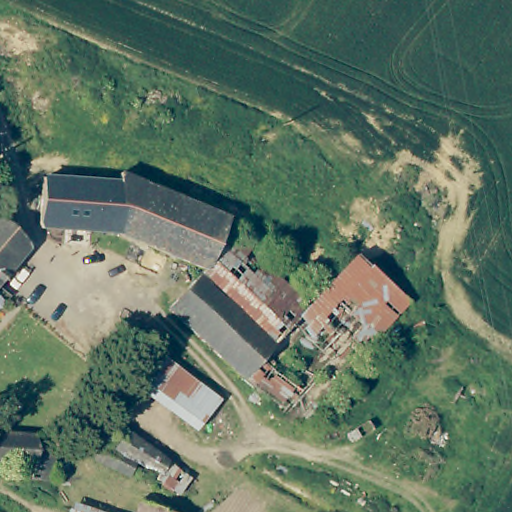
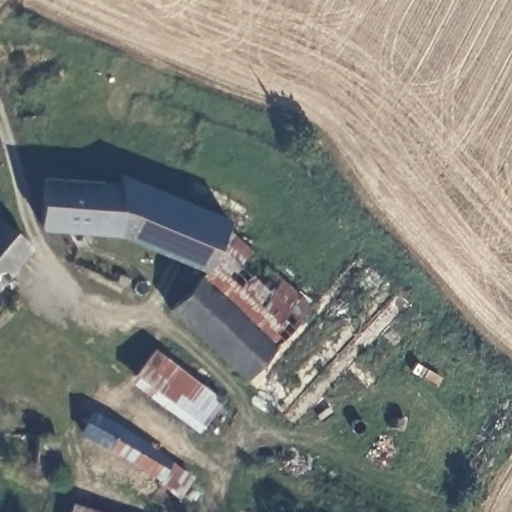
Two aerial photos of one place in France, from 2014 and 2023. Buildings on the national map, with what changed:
unchanged [(53,175),(122,180),(124,175),(159,189),(232,217),(229,226),(210,267),(119,234),(49,228),(43,218),(48,175),(53,175)]
unchanged [(29,247),(0,285),(0,216),(28,239),(29,247)]
unchanged [(266,259),(318,305),(279,344),(210,267),(229,226),(266,259)]
new [(350,376),(294,328),(318,305),(313,301),(357,252),(414,303),(350,376)]
unchanged [(279,344),(248,375),(174,307),(210,267),(279,344)]
unchanged [(222,403),(202,427),(134,378),(154,352),(222,403)]
unchanged [(194,473),(194,475),(179,493),(158,482),(153,490),(94,458),(101,447),(79,431),(93,410),(194,473)]
unchanged [(59,475),(35,475),(34,461),(0,461),(0,432),(59,432),(59,475)]
unchanged [(89,512),(64,512),(66,504),(89,512)]

